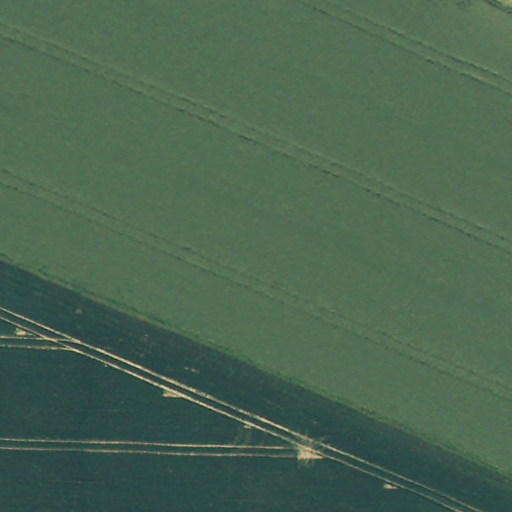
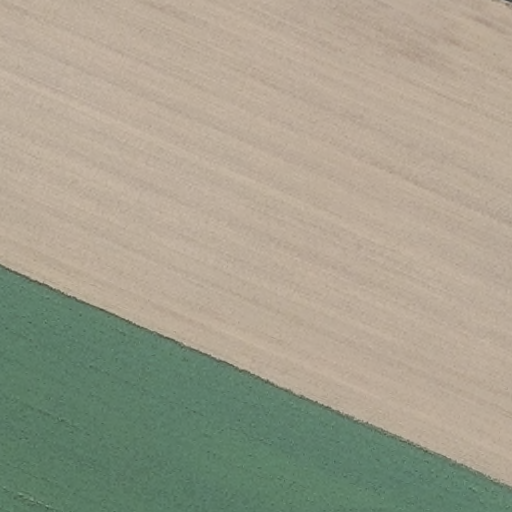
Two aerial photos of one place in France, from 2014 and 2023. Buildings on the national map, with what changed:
[]

